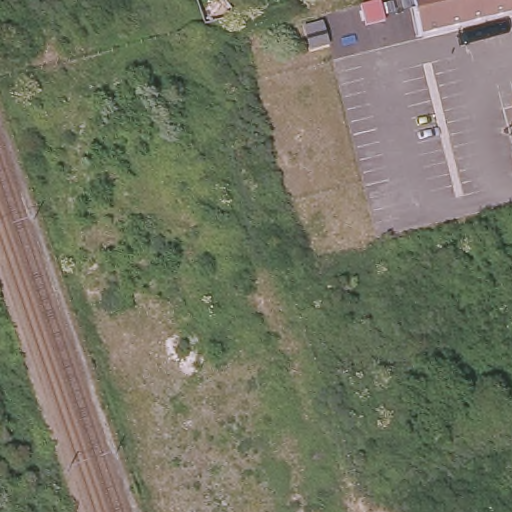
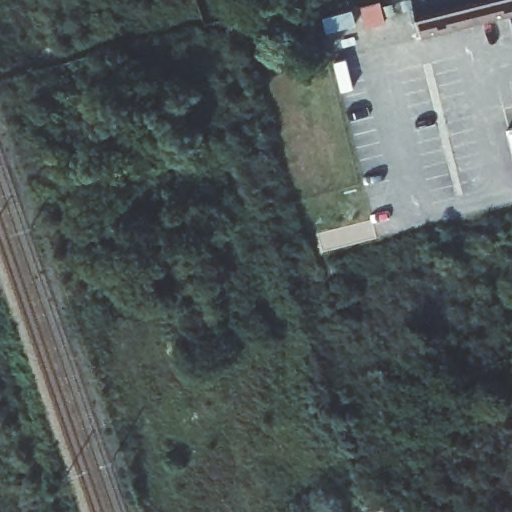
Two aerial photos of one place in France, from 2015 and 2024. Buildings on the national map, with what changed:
unchanged [(409,32),(402,0),(512,0),(512,9),(409,32)]
unchanged [(505,177),(493,130),(512,125),(512,176),(505,177)]

